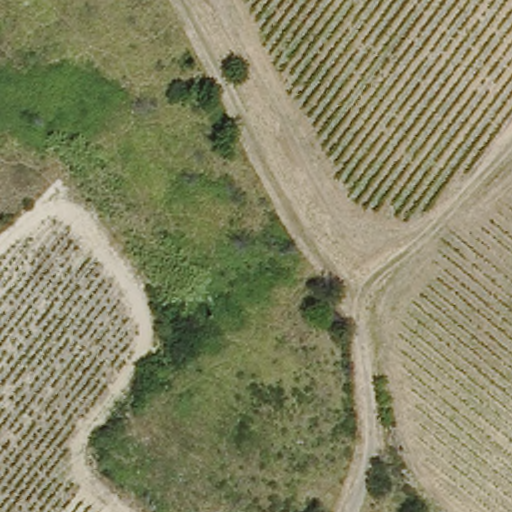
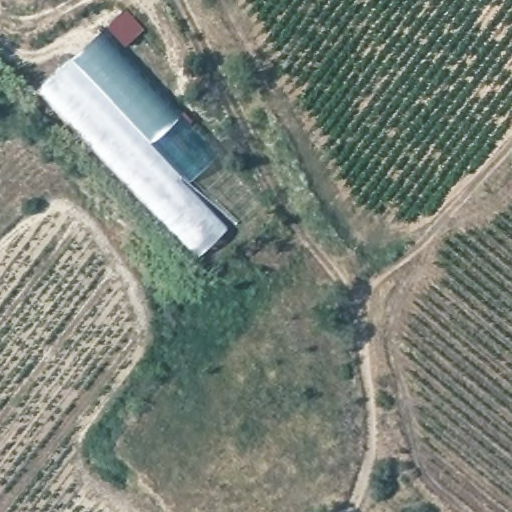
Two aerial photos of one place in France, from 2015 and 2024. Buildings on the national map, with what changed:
new [(102,31),(218,156),(187,186),(225,230),(197,257),(39,92),(102,31)]

